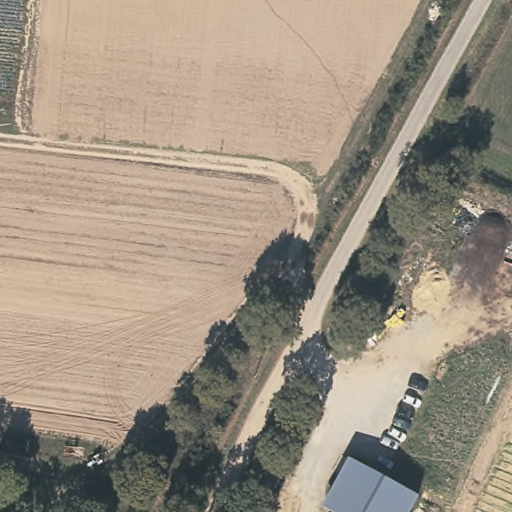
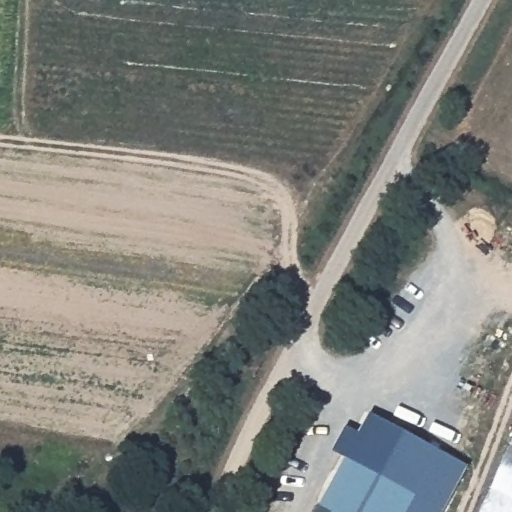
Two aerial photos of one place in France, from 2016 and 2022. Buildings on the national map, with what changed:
new [(348,427),(362,434),(373,413),(471,467),(446,512),(411,512),(420,496),(345,455),(344,457),(334,452),(348,427)]
unchanged [(512,512),(484,512),(512,446),(512,512)]
unchanged [(420,496),(411,512),(324,512),(317,508),(345,455),(420,496)]

